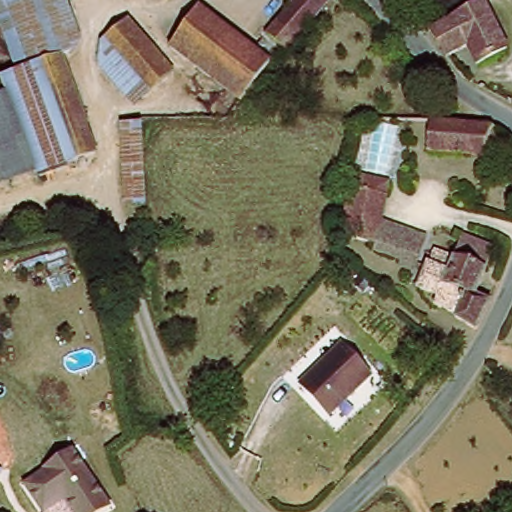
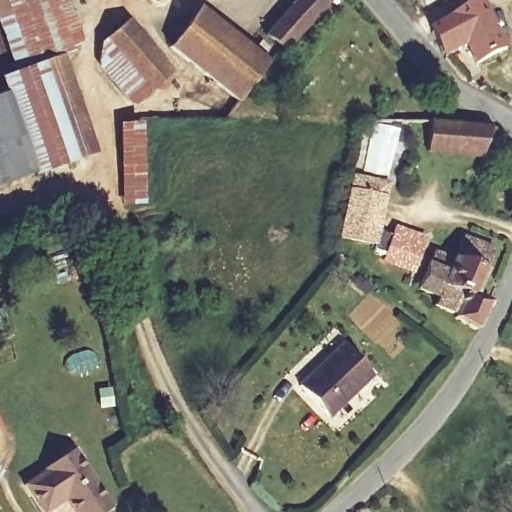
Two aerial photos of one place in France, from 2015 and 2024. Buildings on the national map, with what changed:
unchanged [(0,94),(2,93),(0,86),(0,76),(12,71),(0,34),(0,0),(68,0),(87,49),(70,54),(101,154),(0,185),(0,94)]
unchanged [(265,35),(294,0),(327,0),(291,43),(280,50),(265,35)]
unchanged [(504,44),(476,57),(465,37),(446,47),(437,31),(482,2),(504,44)]
unchanged [(267,71),(233,103),(170,46),(201,9),(267,71)]
unchanged [(114,53),(113,35),(132,21),(172,75),(144,98),(115,58),(114,53)]
unchanged [(147,206),(125,205),(120,124),(144,122),(147,206)]
unchanged [(430,123),(487,126),(490,128),(483,157),(428,154),(430,123)]
unchanged [(353,189),(360,191),(365,170),(390,177),(382,221),(425,232),(419,263),(341,244),(353,189)]
unchanged [(477,328),(455,316),(455,313),(437,305),(440,297),(421,289),(434,253),(452,260),(460,235),(495,248),(479,297),(490,302),(477,328)]
unchanged [(302,391),(345,351),(374,382),(330,423),(302,391)]
unchanged [(55,512),(37,512),(23,492),(44,477),(42,475),(70,455),(100,499),(109,512),(67,512),(64,506),(55,512)]
unchanged [(0,473),(0,468),(2,470),(0,473)]

